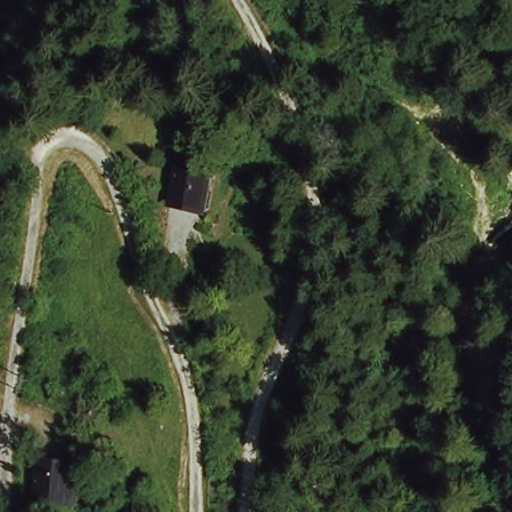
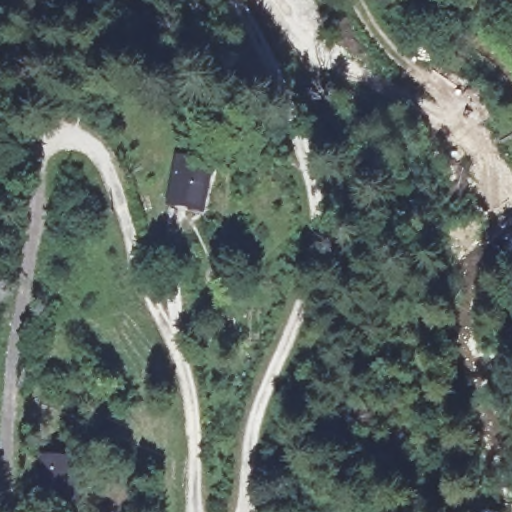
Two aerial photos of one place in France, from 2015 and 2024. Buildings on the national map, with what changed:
unchanged [(171,209),(175,161),(209,162),(205,213),(171,209)]
unchanged [(42,450),(73,455),(65,499),(27,494),(42,450)]

